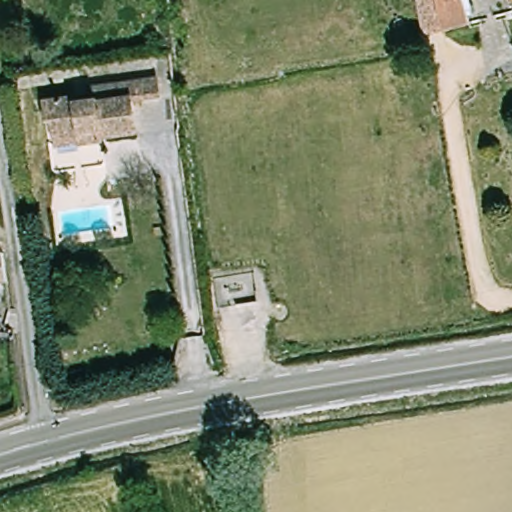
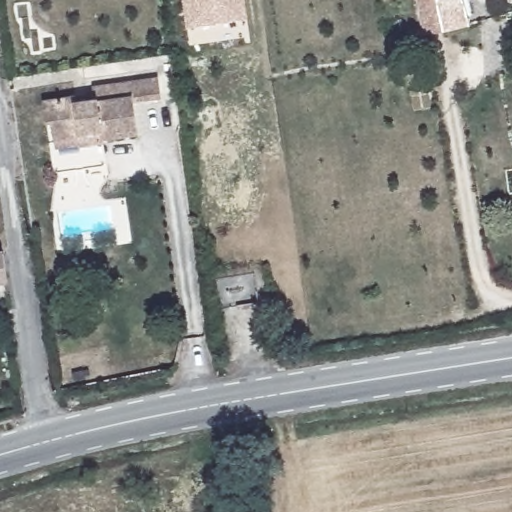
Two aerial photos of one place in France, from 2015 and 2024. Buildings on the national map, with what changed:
new [(186,30),(182,0),(245,0),(248,21),(186,30)]
unchanged [(432,35),(425,0),(478,0),(483,21),(432,35)]
unchanged [(509,0),(512,0),(512,4),(511,5),(509,0)]
unchanged [(61,140),(58,124),(53,125),(50,101),(78,96),(80,103),(102,99),(100,90),(160,79),(163,98),(137,103),(143,134),(112,139),(113,144),(90,148),(63,153),(61,140)]
unchanged [(0,251),(6,251),(10,276),(0,277),(0,251)]

